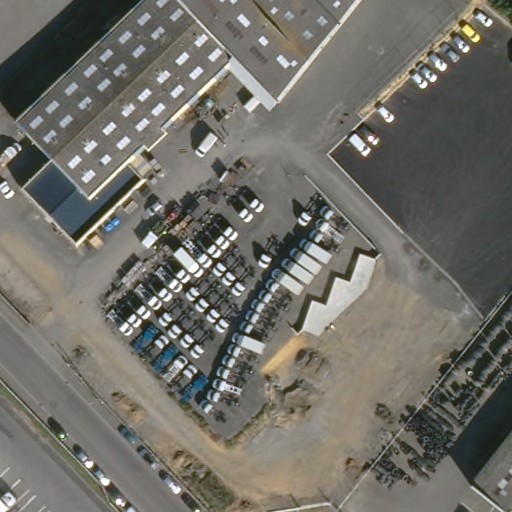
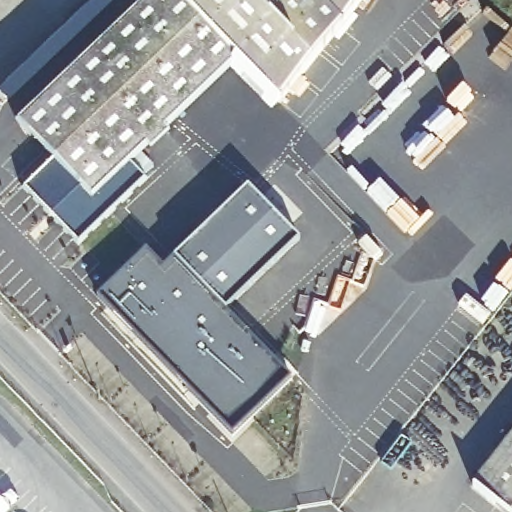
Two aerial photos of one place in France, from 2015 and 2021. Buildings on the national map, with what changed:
unchanged [(239,57),(167,125),(174,132),(155,150),(150,145),(134,160),(150,177),(81,244),(28,188),(57,160),(20,121),(147,0),(366,0),(282,103),(239,57)]
new [(160,267),(171,256),(246,184),(298,238),(223,310),(290,380),(228,439),(92,296),(142,248),(160,267)]
unchanged [(512,437),(512,508),(477,481),(512,437)]

